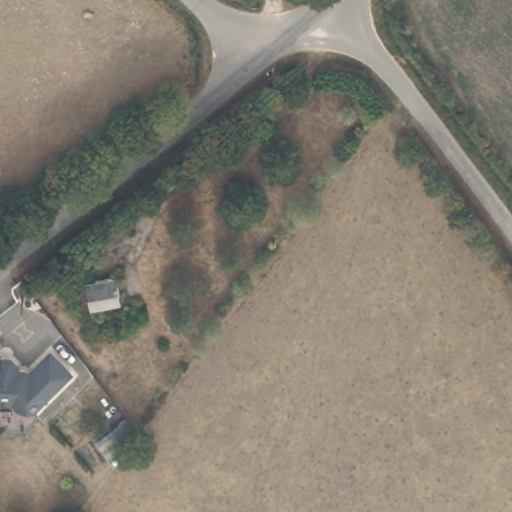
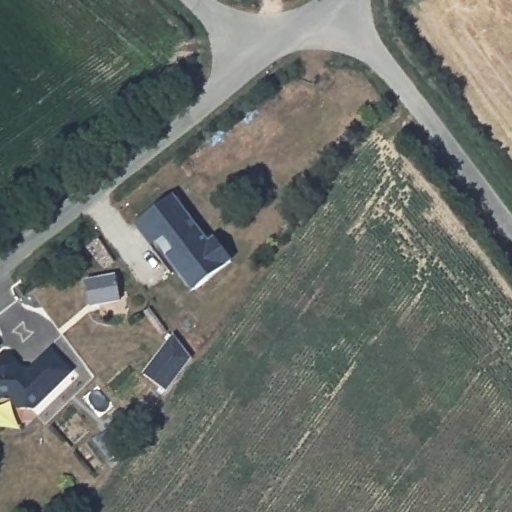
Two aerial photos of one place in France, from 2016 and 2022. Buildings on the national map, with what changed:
new [(208,240),(215,235),(234,260),(225,265),(226,267),(191,291),(176,271),(172,274),(133,224),(174,195),(208,240)]
unchanged [(116,274),(121,299),(91,306),(85,281),(116,274)]
new [(174,332),(192,358),(167,391),(142,373),(174,332)]
unchanged [(1,359),(10,359),(17,366),(17,371),(24,371),(27,374),(50,353),(70,375),(32,412),(20,412),(11,402),(0,402),(0,360),(1,359)]
unchanged [(105,458),(90,438),(120,415),(135,435),(105,458)]

